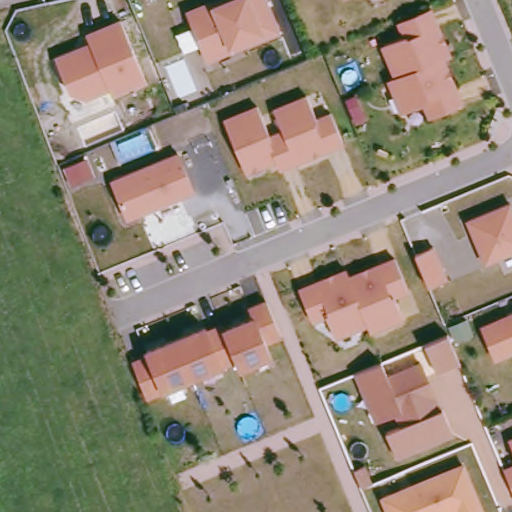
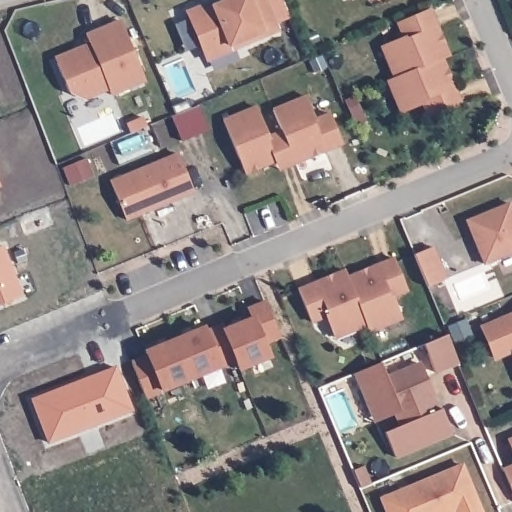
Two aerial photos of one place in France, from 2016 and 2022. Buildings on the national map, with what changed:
unchanged [(205,61),(183,9),(206,0),(214,0),(267,0),(279,30),(205,61)]
unchanged [(443,57),(461,102),(427,116),(421,103),(399,112),(385,77),(392,75),(380,42),(402,34),(395,19),(430,5),(450,53),(443,57)]
unchanged [(111,96),(108,90),(82,99),(67,91),(53,54),(88,40),(85,31),(118,17),(146,80),(111,96)]
unchanged [(279,169),(275,159),(245,172),(222,116),(256,103),(267,131),(280,125),(272,106),(305,92),(316,116),(328,111),(342,143),(279,169)]
unchanged [(125,219),(110,179),(177,150),(194,191),(125,219)]
new [(82,162),(89,179),(66,188),(60,170),(82,162)]
unchanged [(464,217),(511,199),(512,201),(512,250),(481,264),(464,217)]
unchanged [(427,284),(413,249),(433,244),(446,275),(427,284)]
new [(20,296),(0,303),(0,245),(20,296)]
unchanged [(368,330),(365,322),(335,335),(326,314),(310,320),(296,286),(345,266),(347,273),(392,255),(407,290),(393,295),(401,315),(368,330)]
unchanged [(265,343),(270,357),(237,371),(232,360),(159,390),(145,396),(132,355),(143,348),(207,323),(222,320),(225,325),(250,314),(246,305),(265,298),(280,335),(265,343)]
unchanged [(478,320),(512,308),(512,351),(491,359),(478,320)]
unchanged [(435,371),(422,341),(446,333),(457,363),(435,371)]
unchanged [(395,456),(385,428),(396,423),(391,414),(373,422),(352,372),(381,361),(386,372),(420,359),(450,433),(395,456)]
new [(46,443),(29,401),(50,392),(78,381),(113,368),(130,410),(46,443)]
unchanged [(512,433),(512,451),(506,436),(512,433)]
unchanged [(451,512),(383,512),(376,494),(462,460),(484,512),(455,512),(455,511),(451,512)]
unchanged [(512,460),(512,488),(500,465),(512,460)]

